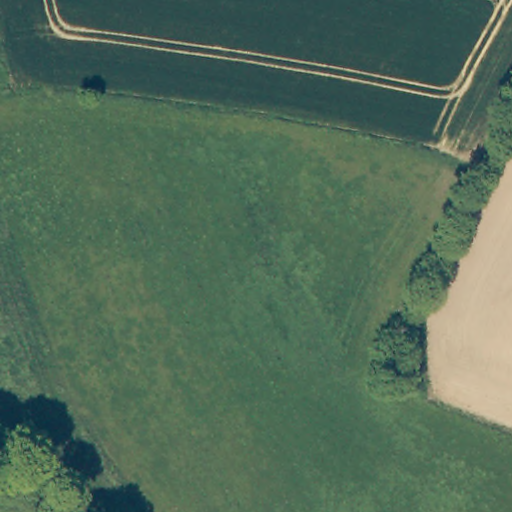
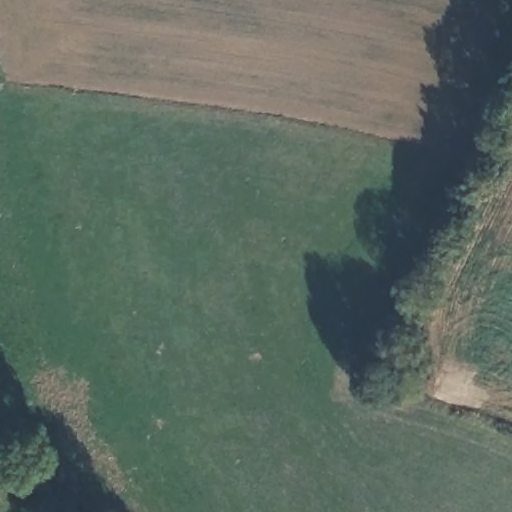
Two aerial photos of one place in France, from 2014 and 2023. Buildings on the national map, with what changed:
[]

